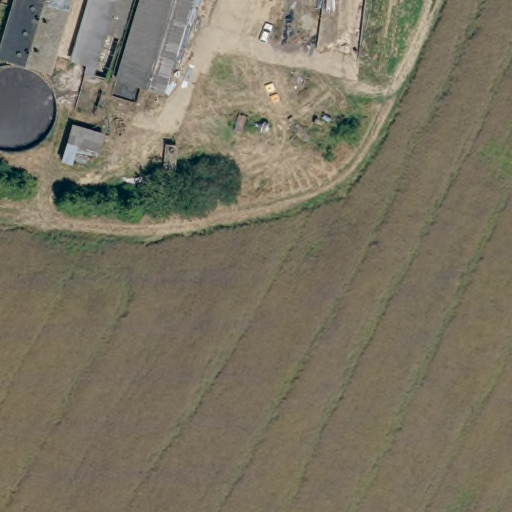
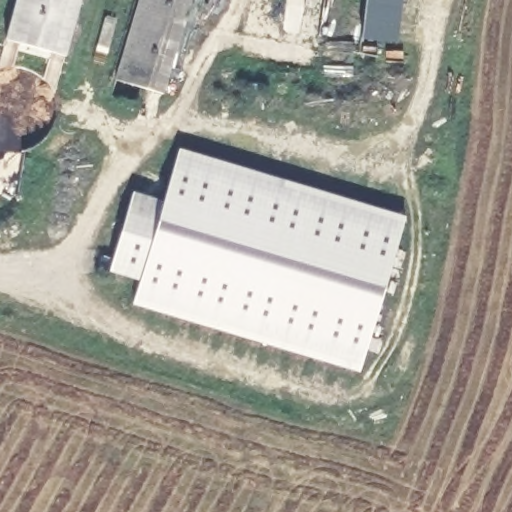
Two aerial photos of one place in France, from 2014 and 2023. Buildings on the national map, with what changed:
unchanged [(62,2),(68,4),(47,72),(0,58),(0,34),(11,0),(63,0),(62,2)]
demolished [(105,85),(83,78),(87,65),(69,60),(87,0),(130,0),(105,85)]
unchanged [(117,82),(143,0),(194,0),(164,97),(117,82)]
new [(366,0),(401,0),(398,44),(361,41),(366,0)]
demolished [(95,169),(65,158),(76,123),(105,134),(95,169)]
new [(131,305),(138,283),(110,272),(132,193),(161,204),(178,148),(406,217),(360,373),(131,305)]

